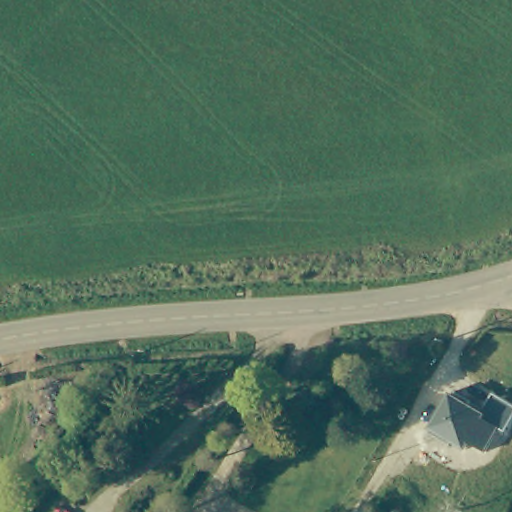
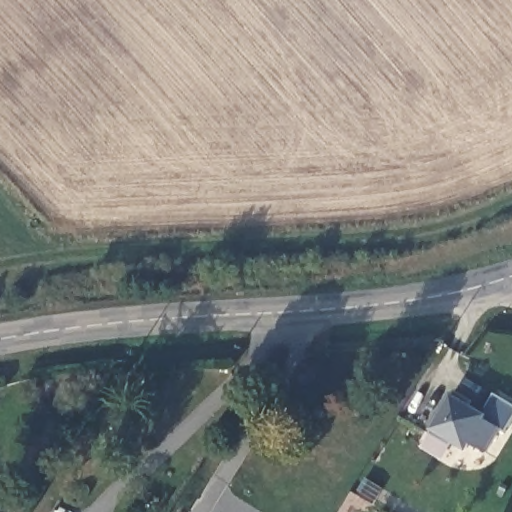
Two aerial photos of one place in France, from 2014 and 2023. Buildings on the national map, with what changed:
unchanged [(456,398),(455,394),(472,404),(472,408),(482,414),(495,396),(512,406),(512,420),(505,433),(498,429),(485,454),(470,444),(467,451),(454,444),(449,446),(430,434),(433,430),(452,396),(456,398)]

